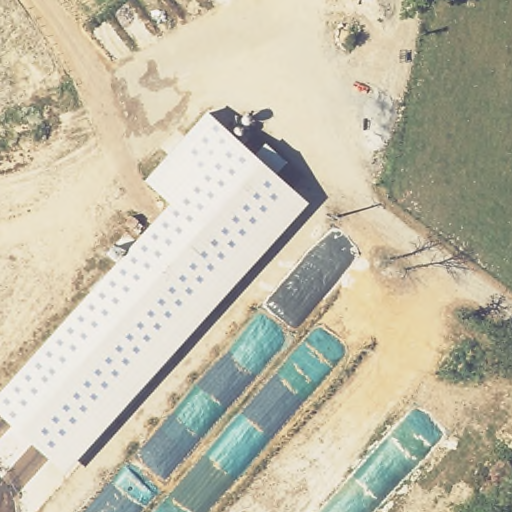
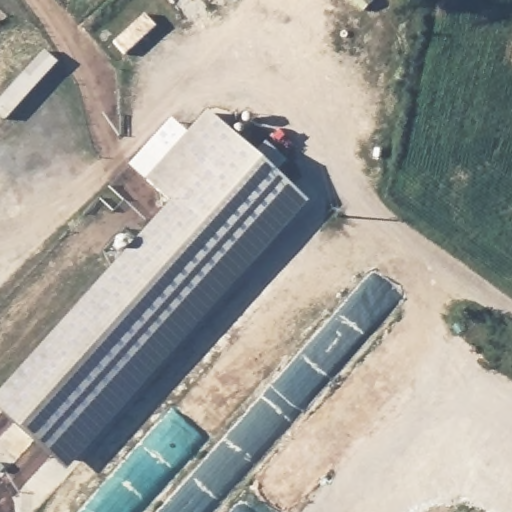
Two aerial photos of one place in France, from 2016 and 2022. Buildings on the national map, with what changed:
unchanged [(144,181),(205,111),(306,201),(63,471),(0,413),(0,392),(170,204),(144,181)]

